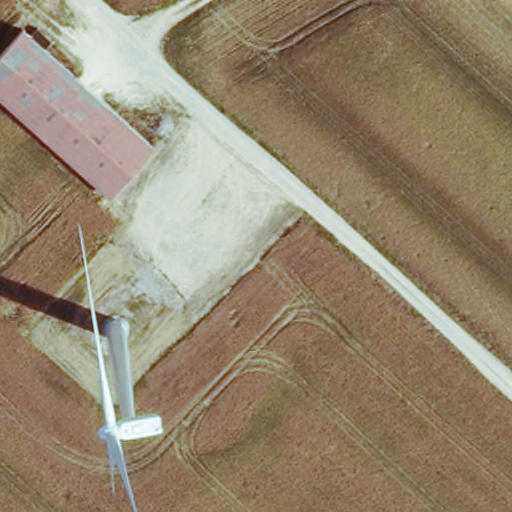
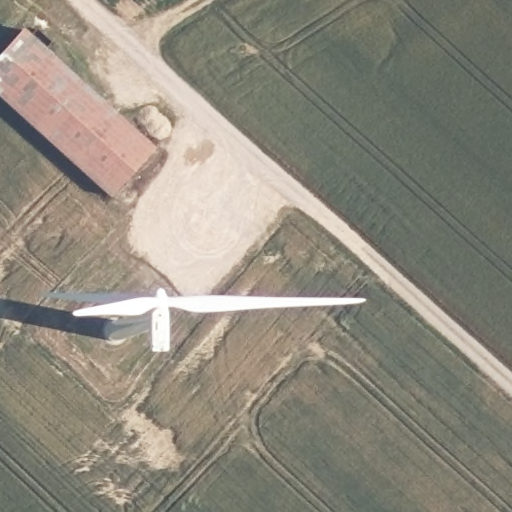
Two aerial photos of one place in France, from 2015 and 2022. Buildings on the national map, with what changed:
unchanged [(155,145),(109,196),(0,96),(0,55),(25,27),(155,145)]

